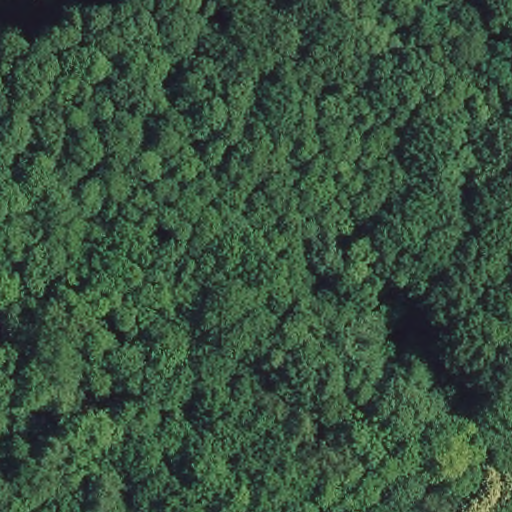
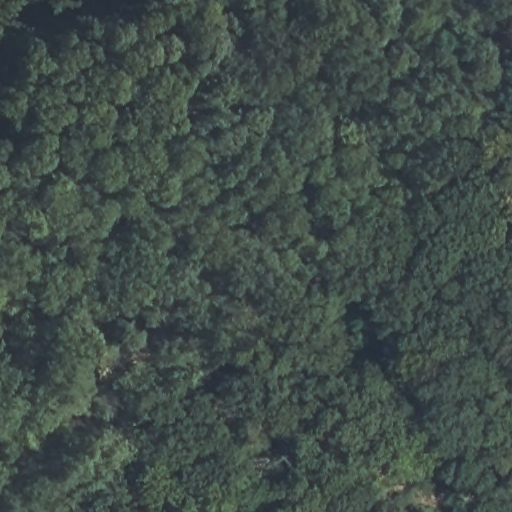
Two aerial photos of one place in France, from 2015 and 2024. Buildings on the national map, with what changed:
[]

